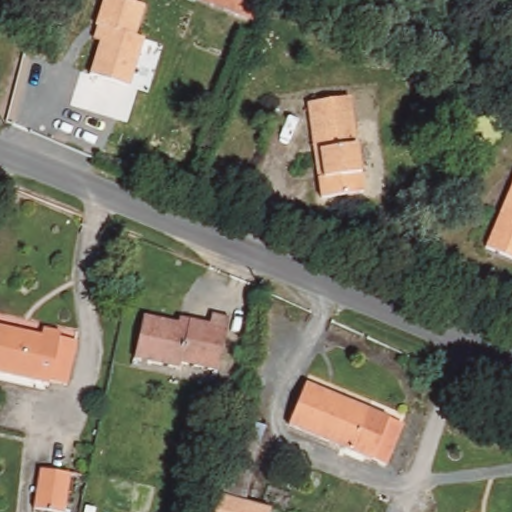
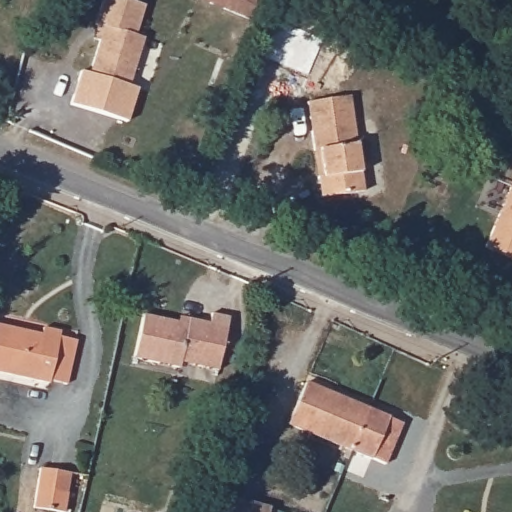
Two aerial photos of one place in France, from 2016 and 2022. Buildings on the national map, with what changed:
unchanged [(135,35),(144,37),(129,85),(88,73),(98,40),(90,37),(96,21),(102,0),(132,0),(144,4),(135,35)]
unchanged [(207,0),(263,0),(255,20),(207,0)]
new [(88,73),(129,85),(139,89),(128,122),(71,105),(81,71),(88,73)]
unchanged [(313,152),(311,135),(307,102),(352,97),(356,129),(363,191),(318,196),(316,177),(322,176),(319,151),(313,152)]
unchanged [(484,246),(512,180),(512,258),(484,246)]
unchanged [(182,317),(193,320),(210,323),(211,316),(229,319),(219,369),(183,362),(182,367),(137,358),(145,317),(181,325),(182,317)]
unchanged [(43,326),(63,331),(62,337),(78,341),(69,382),(52,378),(51,384),(0,373),(0,325),(40,335),(43,326)]
unchanged [(402,425),(386,465),(290,425),(306,385),(402,425)]
unchanged [(239,431),(246,413),(278,427),(272,442),(263,440),(250,499),(230,492),(245,432),(239,431)]
unchanged [(74,475),(66,512),(59,512),(36,507),(45,468),(74,475)]

